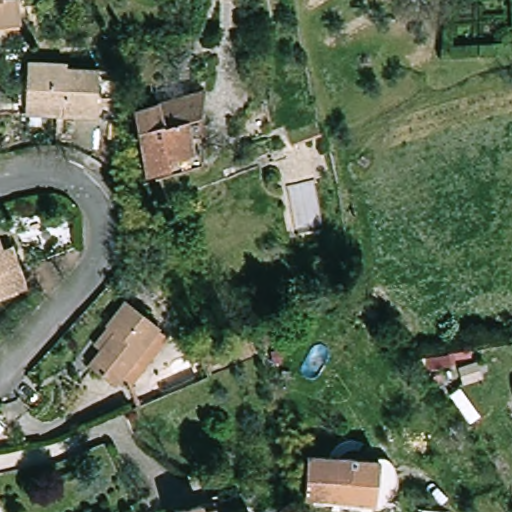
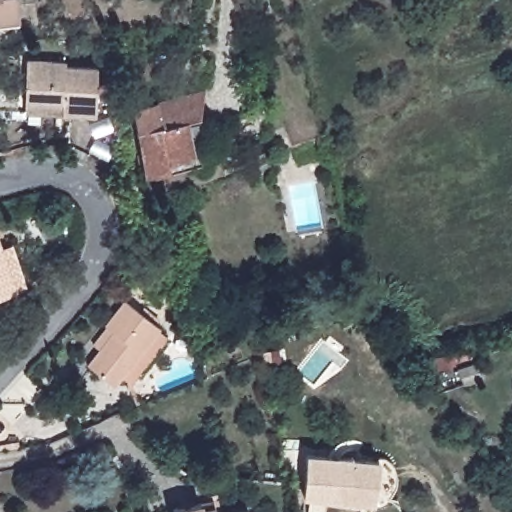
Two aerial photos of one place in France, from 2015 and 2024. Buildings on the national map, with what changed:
unchanged [(18,20),(0,22),(0,0),(16,0),(18,20)]
unchanged [(413,2),(412,0),(419,0),(413,2)]
unchanged [(24,96),(27,57),(65,61),(65,65),(96,67),(92,114),(59,111),(22,107),(24,96)]
unchanged [(205,84),(201,109),(210,147),(203,148),(205,154),(149,167),(134,103),(205,84)]
unchanged [(33,287),(22,291),(0,298),(0,232),(7,251),(18,247),(33,287)]
unchanged [(156,321),(166,328),(150,351),(133,373),(129,379),(126,377),(119,372),(113,380),(86,360),(111,325),(103,319),(122,293),(155,317),(156,321)]
unchanged [(382,458),(377,504),(308,497),(310,453),(382,458)]
unchanged [(206,501),(218,498),(221,512),(179,512),(178,507),(206,501)]
unchanged [(254,512),(227,512),(253,506),(254,512)]

